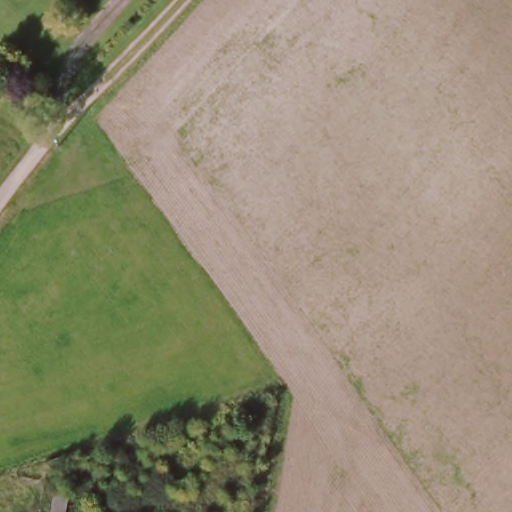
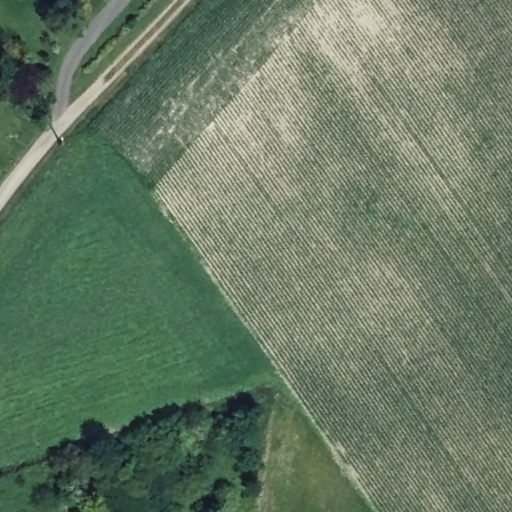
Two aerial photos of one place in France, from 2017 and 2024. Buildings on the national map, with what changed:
unchanged [(79,503),(77,512),(62,512),(64,500),(79,503)]

